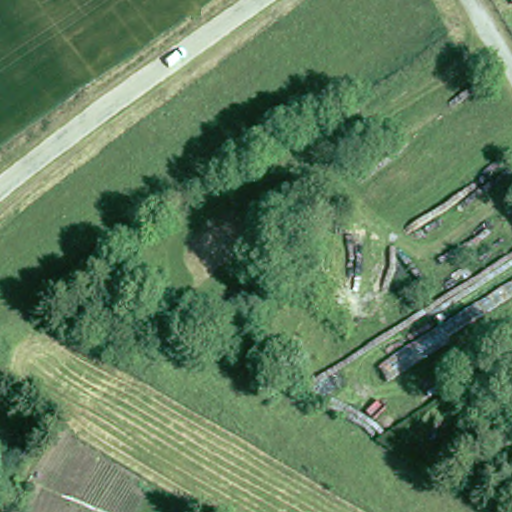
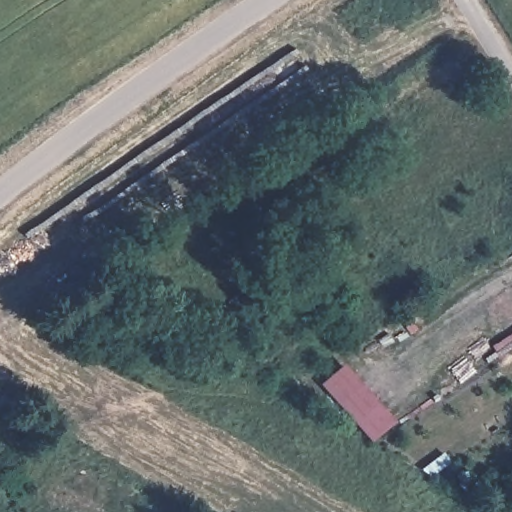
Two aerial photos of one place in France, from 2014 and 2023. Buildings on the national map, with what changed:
new [(373,443),(322,384),(345,364),(397,422),(373,443)]

